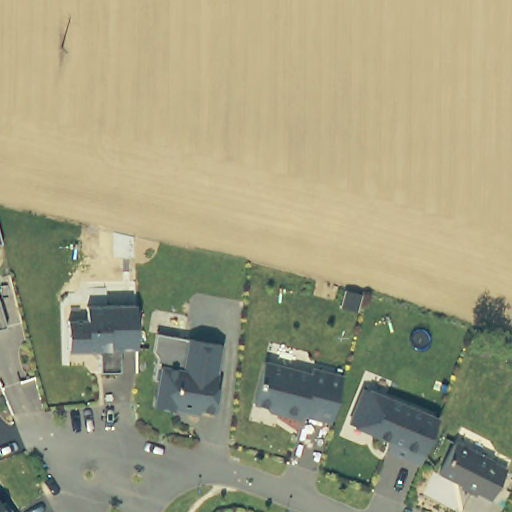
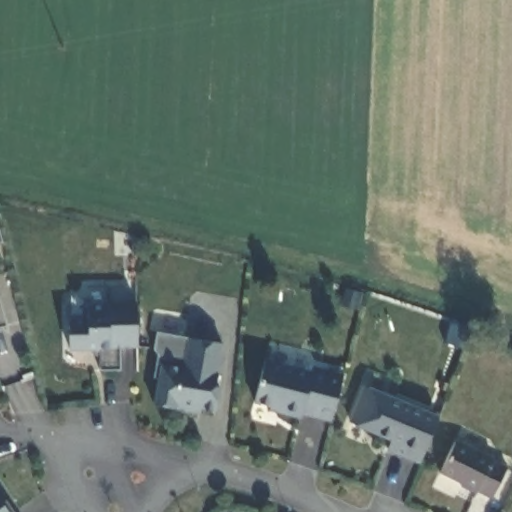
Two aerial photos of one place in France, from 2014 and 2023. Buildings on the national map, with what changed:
unchanged [(89,343),(67,344),(67,318),(86,317),(86,303),(135,302),(136,331),(136,345),(119,346),(119,369),(98,369),(97,352),(89,343)]
unchanged [(5,325),(0,326),(0,308),(5,325)]
unchanged [(152,403),(157,377),(152,377),(156,354),(152,348),(155,330),(221,342),(213,385),(218,386),(214,409),(199,407),(198,411),(185,409),(181,403),(174,402),(173,407),(152,403)]
unchanged [(263,359),(310,371),(312,365),(342,373),(330,420),(301,413),(300,416),(277,410),(278,407),(252,400),(263,359)]
unchanged [(362,386),(437,415),(418,460),(387,447),(390,437),(348,420),(362,386)]
unchanged [(460,482),(438,471),(455,438),(492,456),(492,458),(506,465),(490,497),(476,489),(475,492),(459,484),(460,482)]
unchanged [(1,502),(4,499),(12,512),(0,512),(0,501),(1,502)]

